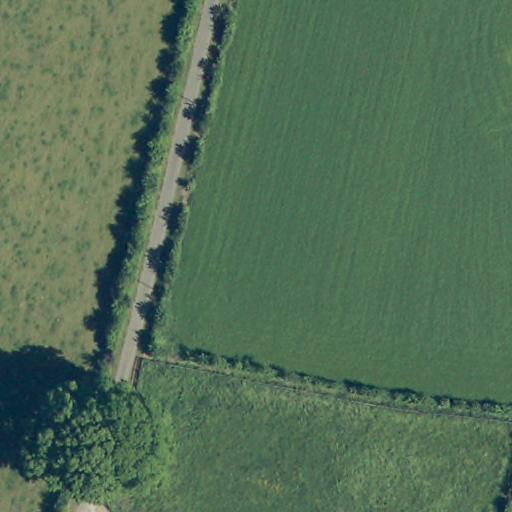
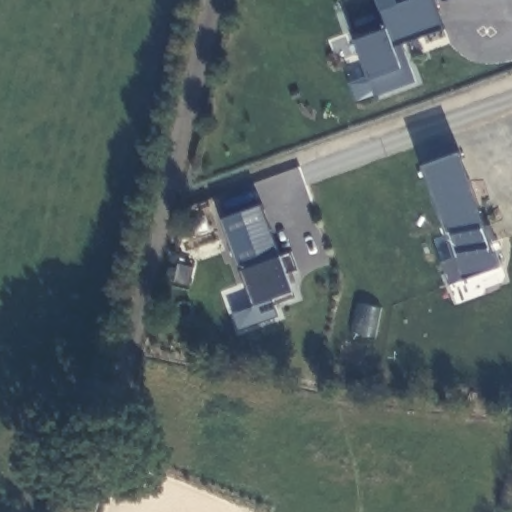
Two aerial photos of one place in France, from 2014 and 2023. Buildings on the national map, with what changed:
new [(357,38),(388,27),(377,0),(398,0),(400,4),(410,0),(434,0),(445,28),(402,44),(417,81),(377,94),(357,38)]
new [(460,153),(465,168),(507,284),(456,302),(447,279),(461,274),(422,167),(460,153)]
new [(222,219),(262,204),(280,256),(292,251),(298,268),(295,271),(298,281),(292,283),(297,296),(277,304),(274,297),(255,304),(222,219)]

